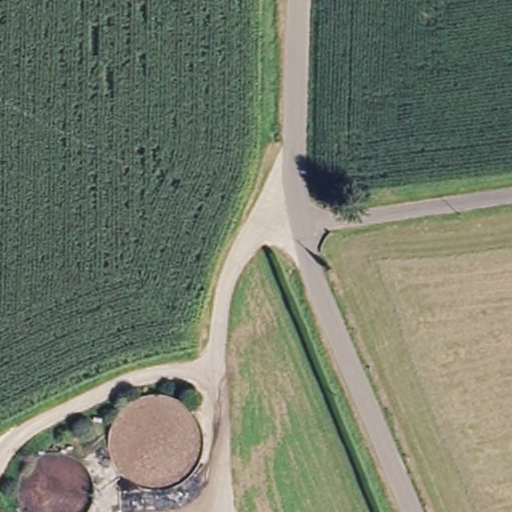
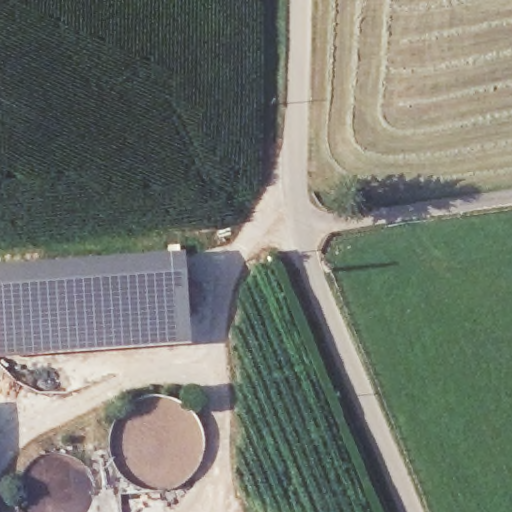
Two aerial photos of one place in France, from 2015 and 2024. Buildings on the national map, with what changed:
new [(188,324),(0,336),(0,264),(184,253),(188,324)]

